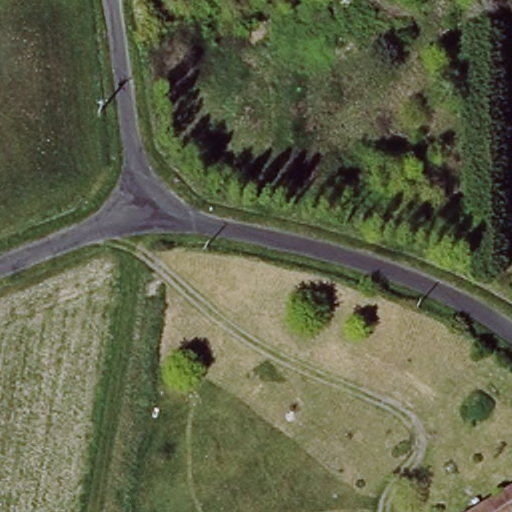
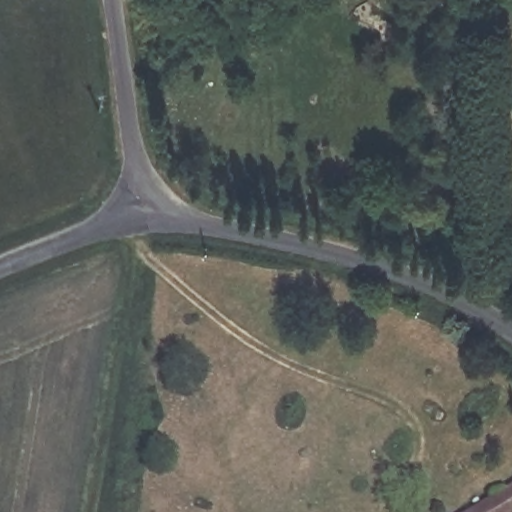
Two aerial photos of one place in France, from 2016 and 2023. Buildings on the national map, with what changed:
unchanged [(512,512),(469,512),(512,485),(512,512)]

